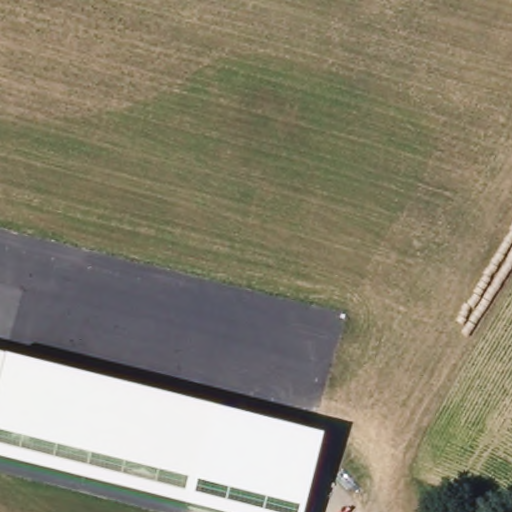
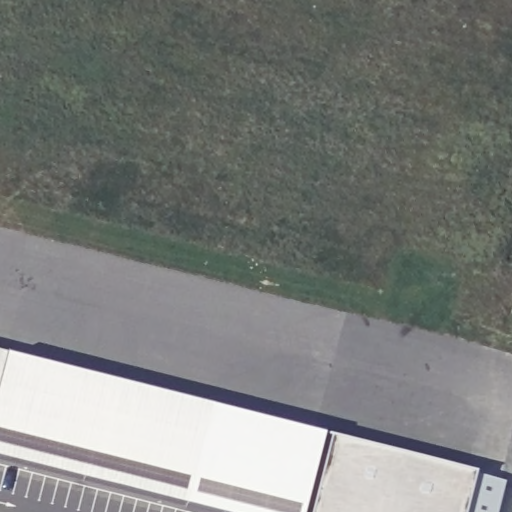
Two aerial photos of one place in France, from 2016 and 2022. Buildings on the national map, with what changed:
unchanged [(0,355),(5,356),(0,378),(0,355)]
unchanged [(324,437),(306,512),(208,512),(0,460),(0,378),(5,356),(324,437)]
new [(476,471),(466,512),(312,512),(330,439),(476,471)]

